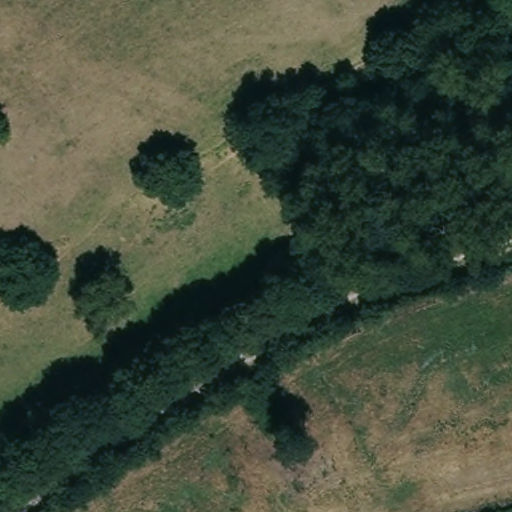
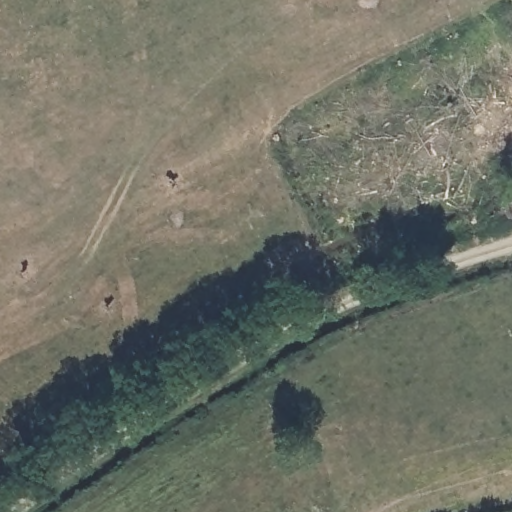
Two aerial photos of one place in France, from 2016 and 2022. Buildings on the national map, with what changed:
[]

